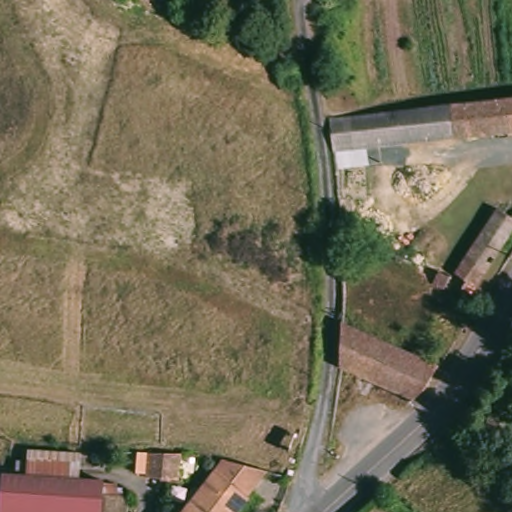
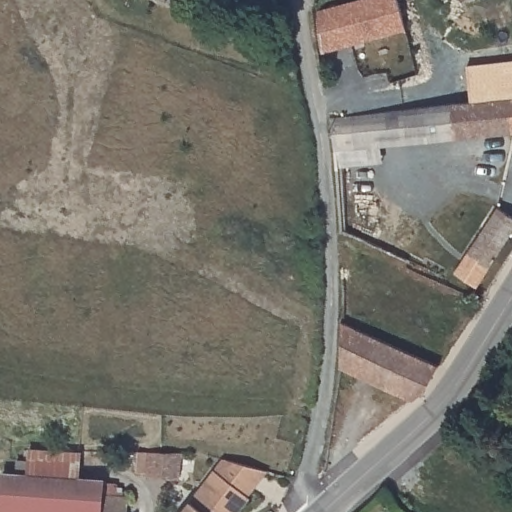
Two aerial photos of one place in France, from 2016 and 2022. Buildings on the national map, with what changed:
new [(321,54),(315,11),(357,0),(398,0),(406,30),(321,54)]
unchanged [(398,110),(512,98),(512,133),(401,145),(398,110)]
unchanged [(398,110),(401,145),(361,149),(358,115),(398,110)]
unchanged [(361,149),(362,165),(336,167),(330,117),(358,115),(361,149)]
unchanged [(471,278),(460,270),(501,205),(512,212),(512,235),(476,291),(466,285),(471,278)]
unchanged [(434,378),(425,393),(415,401),(340,367),(342,321),(367,332),(442,366),(434,378)]
unchanged [(20,469),(21,447),(78,449),(75,472),(101,472),(119,475),(118,490),(126,491),(125,512),(0,512),(0,468),(20,469)]
unchanged [(143,479),(142,473),(132,473),(133,456),(143,457),(143,452),(145,452),(176,452),(175,480),(168,480),(167,480),(143,479)]
unchanged [(219,457),(224,458),(233,460),(247,464),(258,467),(243,492),(245,494),(234,512),(183,512),(218,456),(219,457)]

